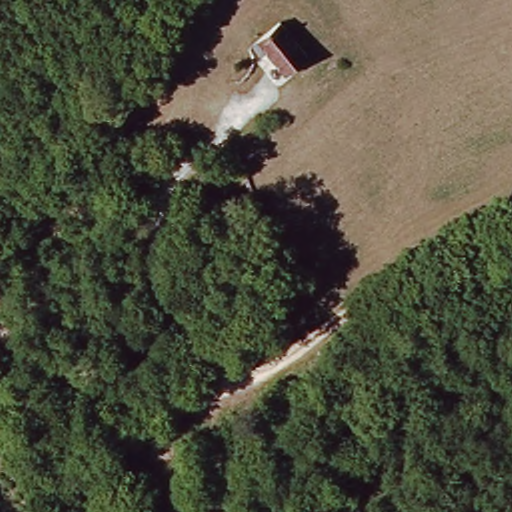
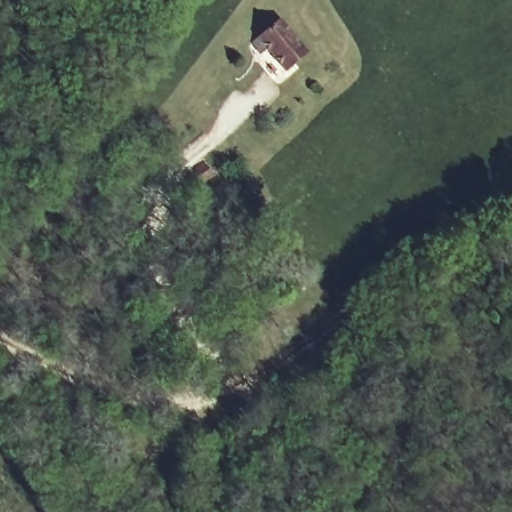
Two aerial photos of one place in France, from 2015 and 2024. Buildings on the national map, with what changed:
unchanged [(255,33),(277,15),(305,50),(282,68),(255,33)]

